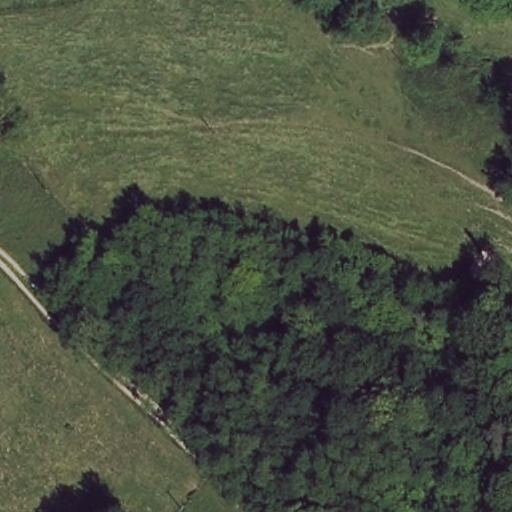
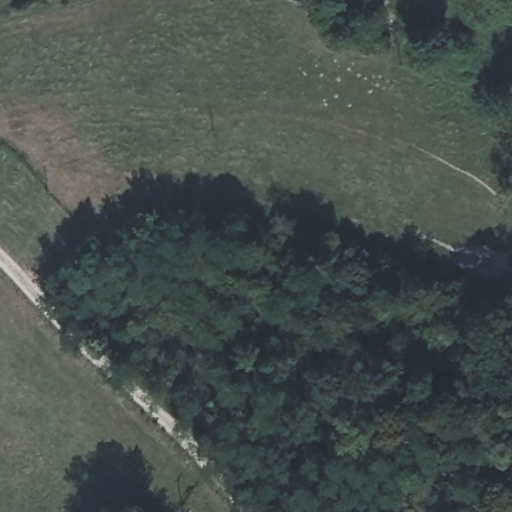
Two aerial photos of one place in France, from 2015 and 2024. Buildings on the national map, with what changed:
[]

